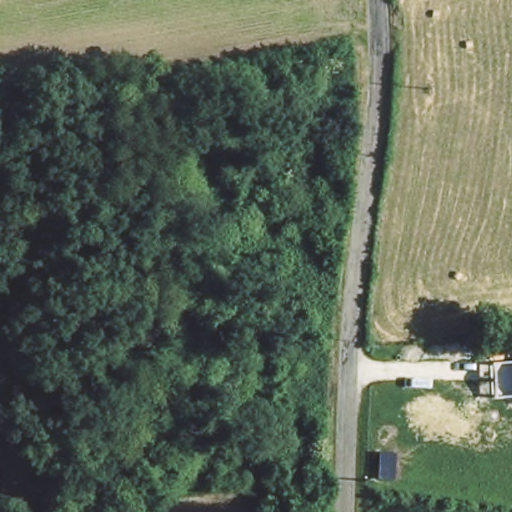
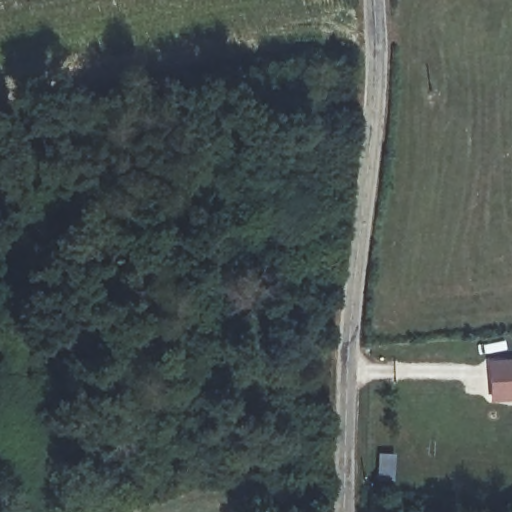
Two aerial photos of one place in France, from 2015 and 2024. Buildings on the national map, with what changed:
unchanged [(487,359),(512,358),(512,400),(489,401),(487,359)]

